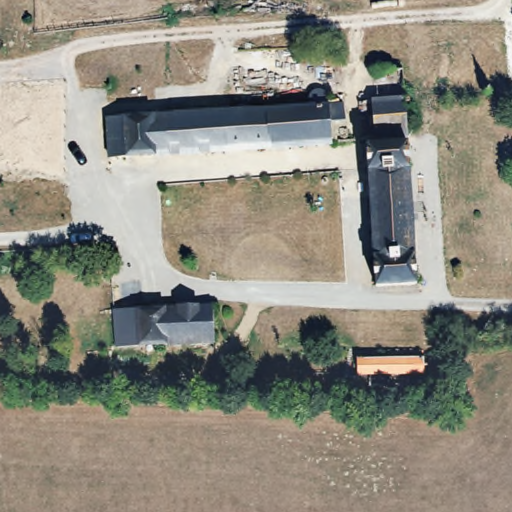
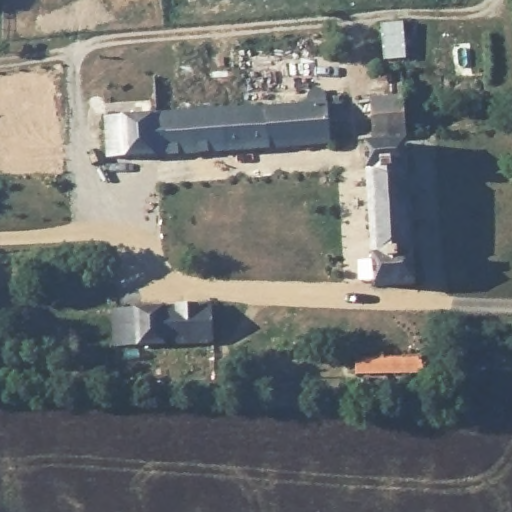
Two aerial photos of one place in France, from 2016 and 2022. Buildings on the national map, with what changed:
unchanged [(110,117),(262,108),(310,106),(309,91),(328,91),(329,104),(330,142),(306,143),(112,157),(111,156),(111,130),(98,130),(98,114),(110,114),(110,117)]
unchanged [(405,101),(407,137),(372,139),(371,103),(405,101)]
unchanged [(410,146),(420,285),(378,289),(367,149),(410,146)]
unchanged [(210,307),(213,340),(164,344),(115,347),(112,314),(210,307)]
unchanged [(426,352),(426,364),(412,365),(412,379),(360,380),(360,355),(426,352)]

